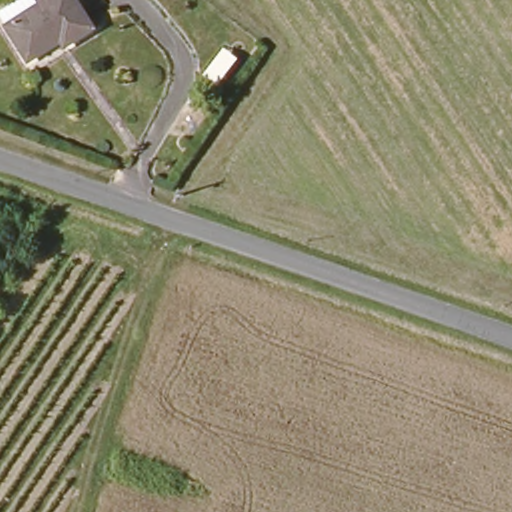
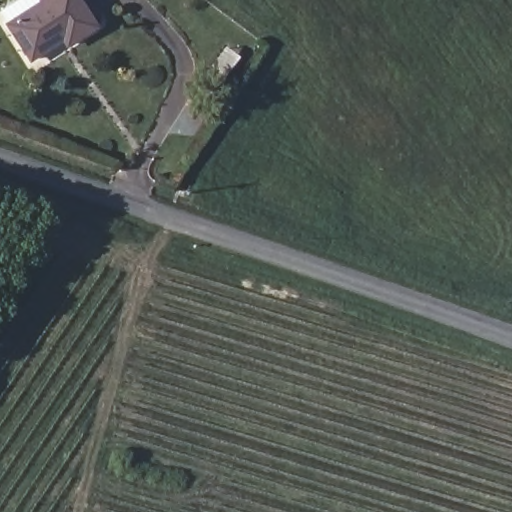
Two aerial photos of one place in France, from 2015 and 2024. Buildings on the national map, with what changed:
unchanged [(4,14),(26,0),(70,0),(15,34),(4,14)]
unchanged [(74,55),(69,48),(36,70),(15,34),(70,0),(79,0),(102,37),(74,55)]

